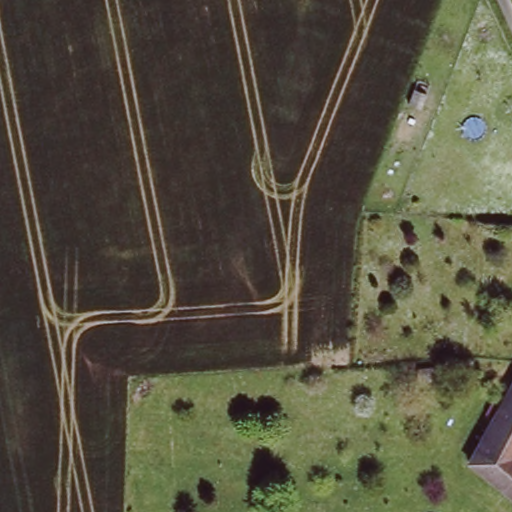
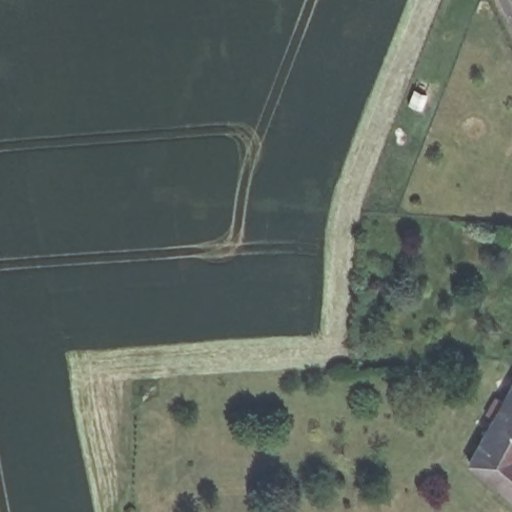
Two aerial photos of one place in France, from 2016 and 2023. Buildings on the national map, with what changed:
unchanged [(512,387),(512,494),(471,460),(512,387)]

